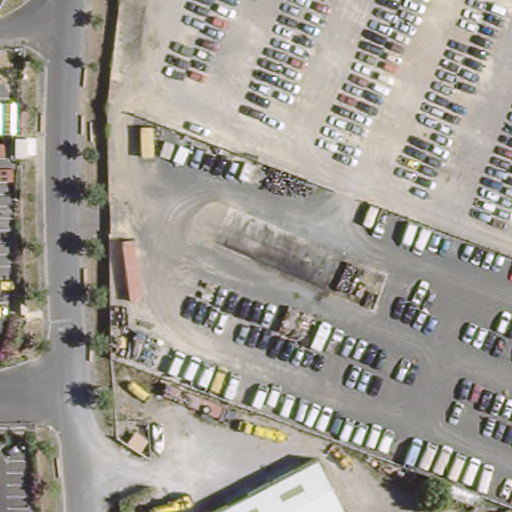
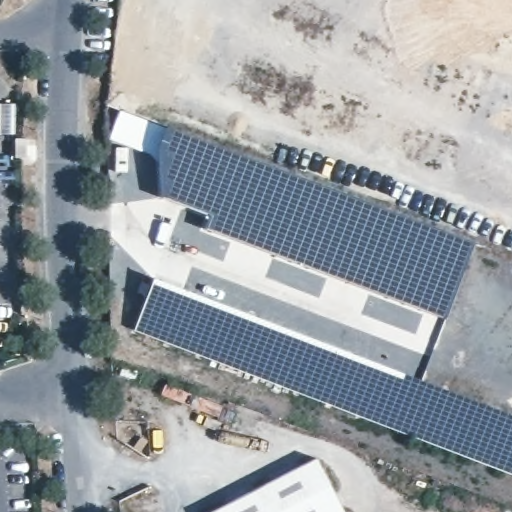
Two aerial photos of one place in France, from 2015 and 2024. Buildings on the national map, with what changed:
new [(167,127),(474,242),(445,319),(204,228),(207,214),(161,197),(159,160),(149,152),(110,138),(120,110),(167,127)]
new [(135,330),(154,278),(512,415),(512,475),(135,330)]
unchanged [(344,512),(216,512),(317,459),(344,512)]

